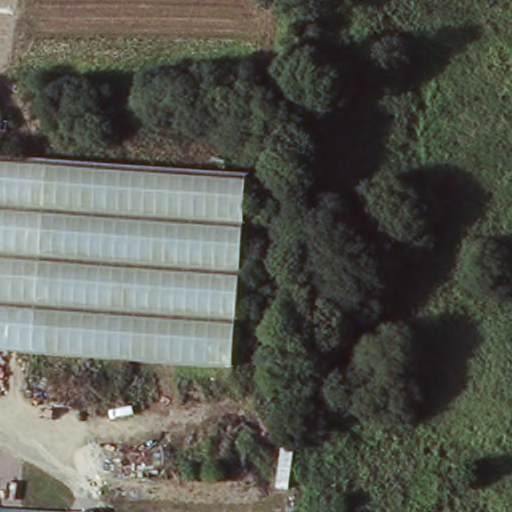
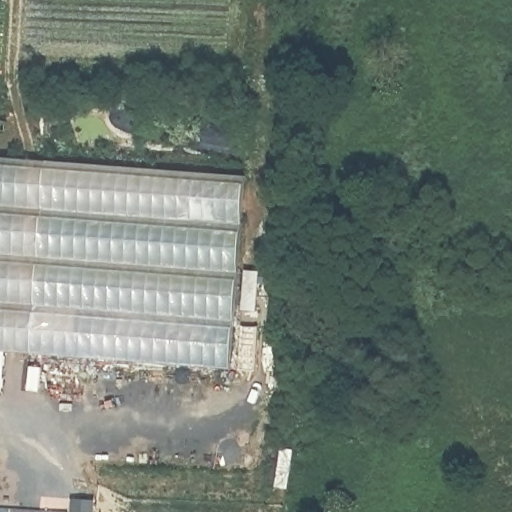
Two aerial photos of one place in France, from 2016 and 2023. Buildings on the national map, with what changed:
unchanged [(243,167),(232,360),(0,346),(0,153),(243,167)]

